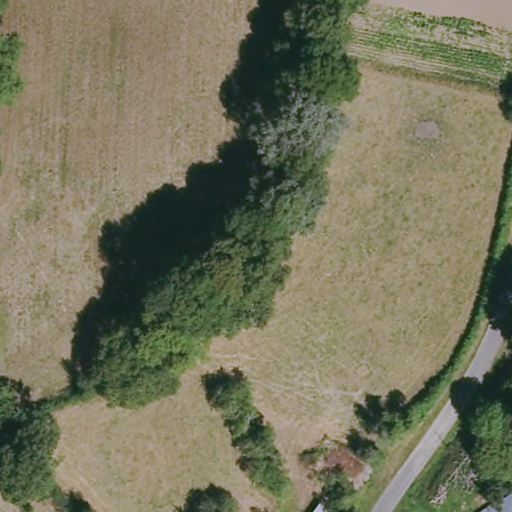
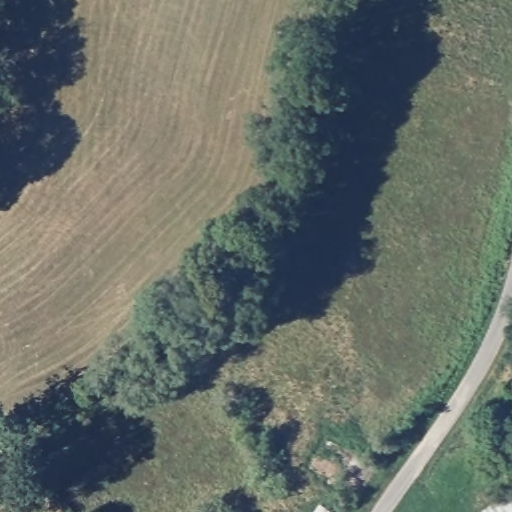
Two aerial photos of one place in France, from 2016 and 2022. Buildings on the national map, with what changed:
unchanged [(497,512),(512,500),(512,512),(497,512)]
unchanged [(337,512),(317,512),(323,502),(337,512)]

